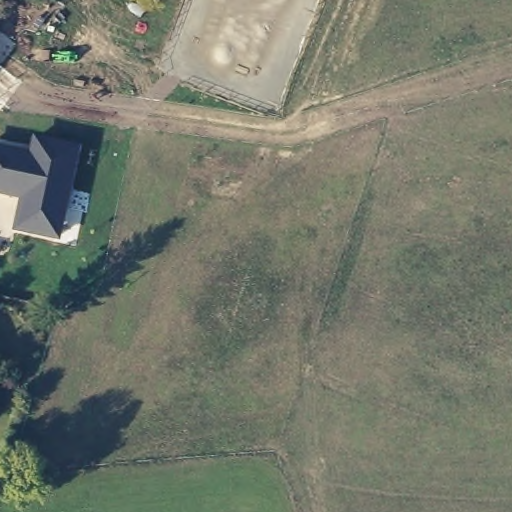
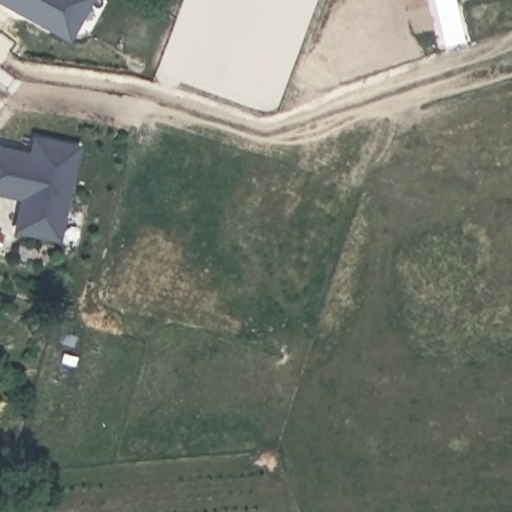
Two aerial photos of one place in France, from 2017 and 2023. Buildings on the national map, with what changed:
new [(0,0),(91,0),(69,40),(0,1),(0,0)]
unchanged [(19,199),(0,194),(0,145),(29,152),(33,134),(80,144),(59,240),(13,230),(19,199)]

